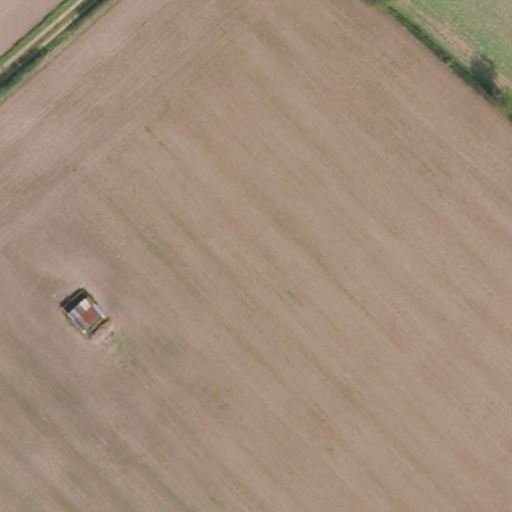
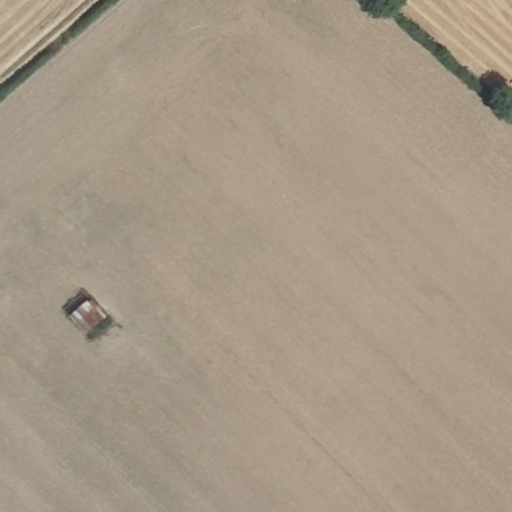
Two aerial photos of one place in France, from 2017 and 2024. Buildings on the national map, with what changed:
unchanged [(105,323),(83,339),(67,318),(90,301),(105,323)]

